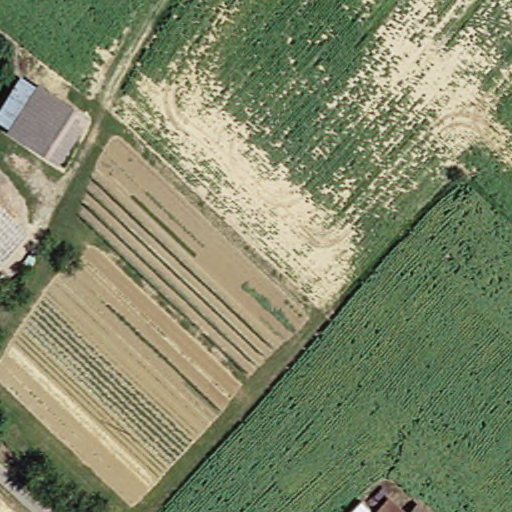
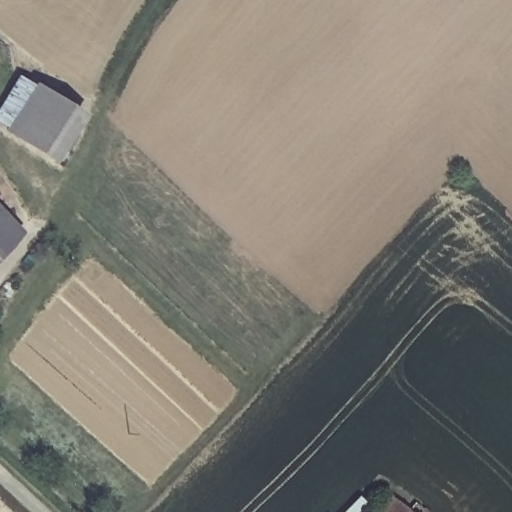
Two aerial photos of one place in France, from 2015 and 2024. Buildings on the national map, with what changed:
unchanged [(51,149),(7,119),(33,79),(76,106),(51,149)]
unchanged [(9,222),(0,230),(0,212),(9,222)]
unchanged [(0,251),(0,230),(9,222),(19,233),(0,251)]
unchanged [(426,512),(371,512),(396,484),(426,512)]

